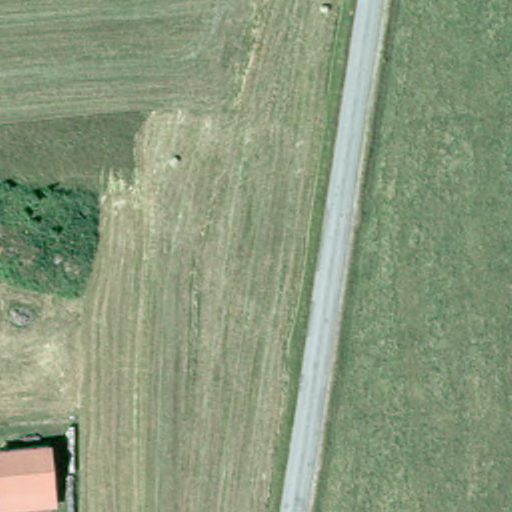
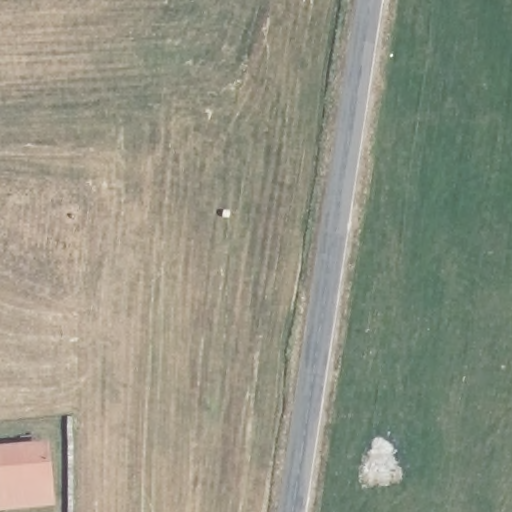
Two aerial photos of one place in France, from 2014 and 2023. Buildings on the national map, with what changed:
unchanged [(49,438),(55,503),(0,509),(0,443),(49,438)]

